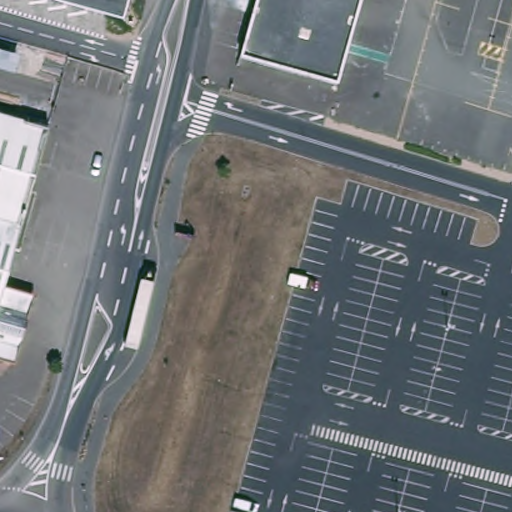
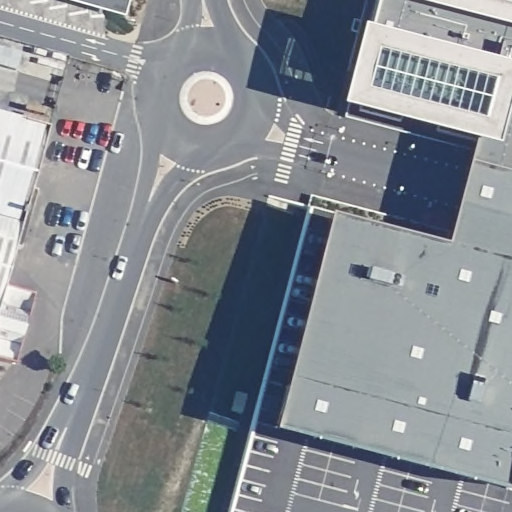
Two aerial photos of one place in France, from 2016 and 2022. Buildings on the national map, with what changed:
unchanged [(54,0),(130,0),(125,20),(54,0)]
demolished [(365,0),(341,83),(244,56),(260,0),(365,0)]
new [(274,429),(328,222),(444,253),(450,230),(429,224),(432,210),(454,216),(465,169),(474,141),(432,135),(435,124),(396,116),(395,123),(358,118),(337,113),(358,34),(366,36),(375,2),(370,0),(512,0),(512,464),(505,489),(274,429)]
unchanged [(21,56),(19,75),(0,70),(0,50),(21,56)]
unchanged [(47,129),(4,288),(30,295),(10,366),(0,363),(0,115),(47,129)]

